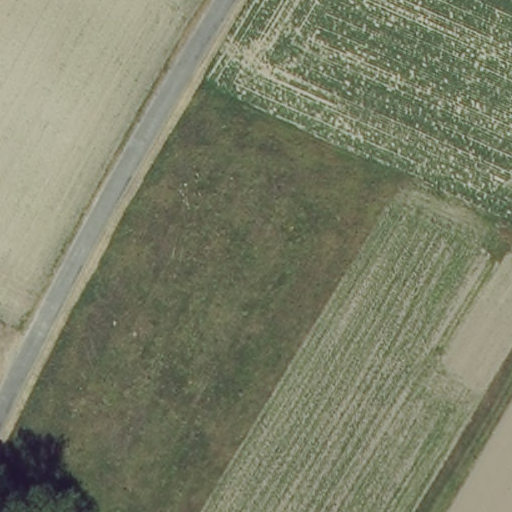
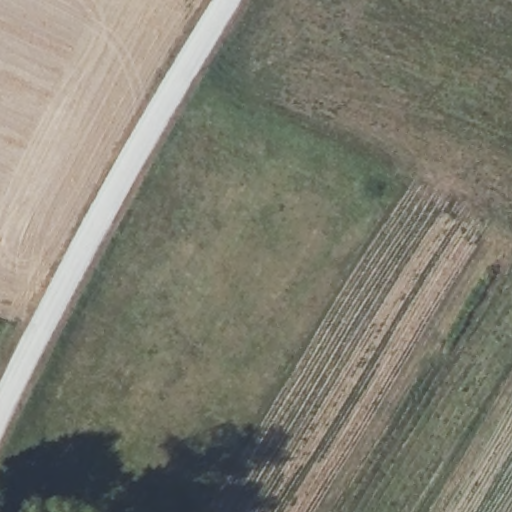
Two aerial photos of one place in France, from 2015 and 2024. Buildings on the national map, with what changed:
[]

